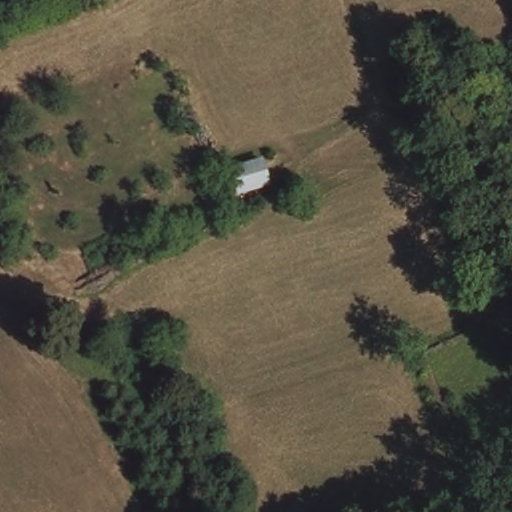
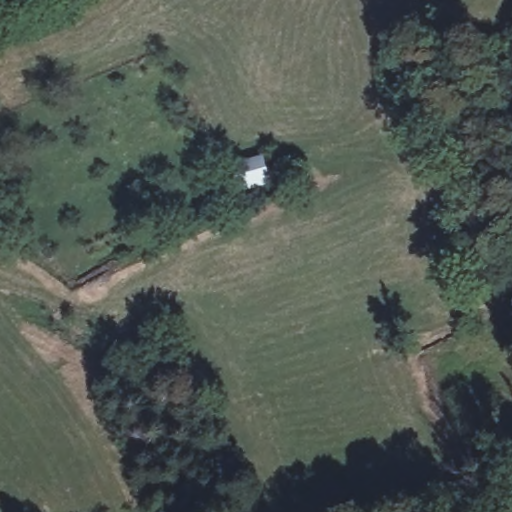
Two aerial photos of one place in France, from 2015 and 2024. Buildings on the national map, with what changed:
unchanged [(265,155),(273,179),(243,187),(234,162),(265,155)]
unchanged [(210,200),(217,216),(214,221),(205,223),(196,203),(210,200)]

